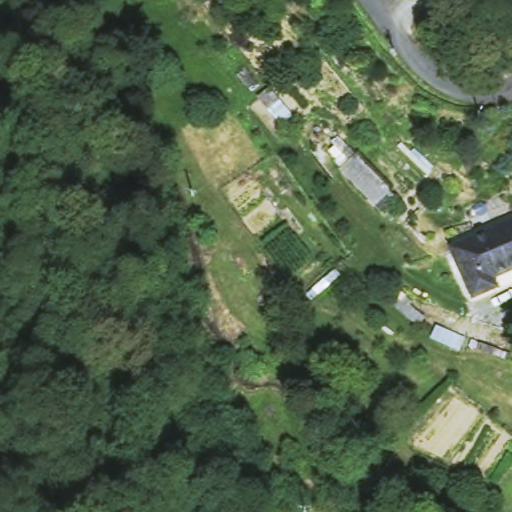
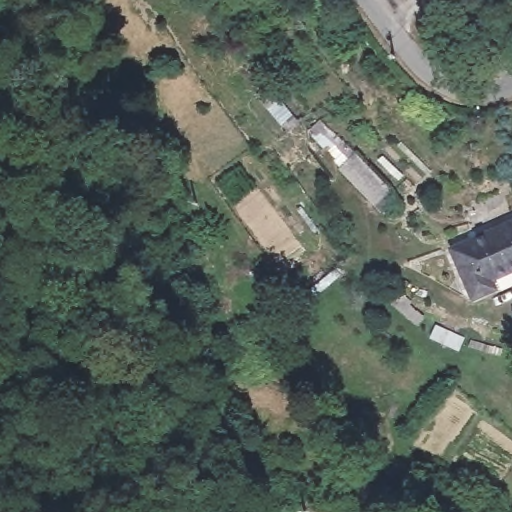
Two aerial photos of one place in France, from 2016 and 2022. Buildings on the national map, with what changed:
unchanged [(512,274),(491,284),(496,297),(467,308),(445,243),(512,217),(512,274)]

